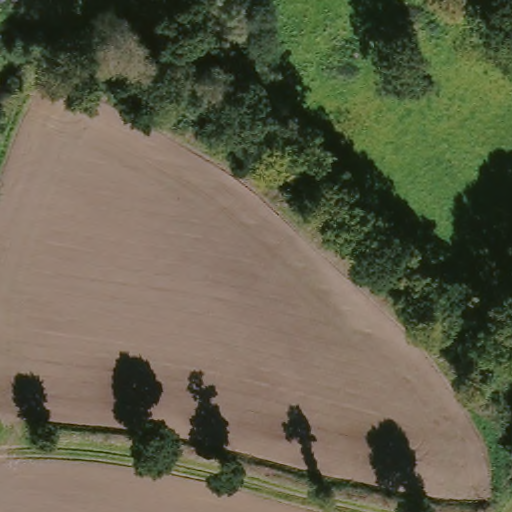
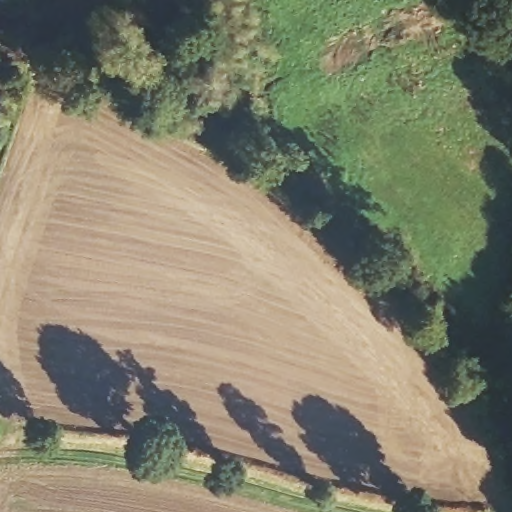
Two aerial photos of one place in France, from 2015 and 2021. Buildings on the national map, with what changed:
unchanged [(0,5),(0,0),(4,0),(3,6),(0,5)]
unchanged [(3,88),(0,98),(0,87),(3,88)]

